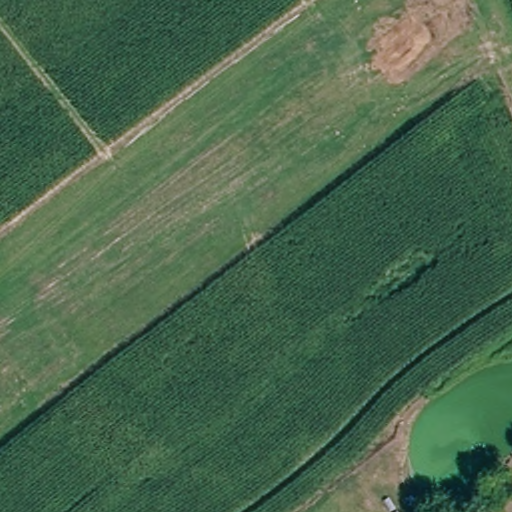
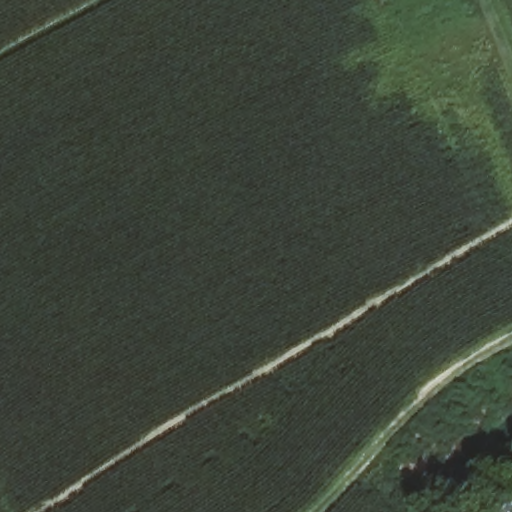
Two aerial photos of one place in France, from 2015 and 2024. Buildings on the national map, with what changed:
[]

